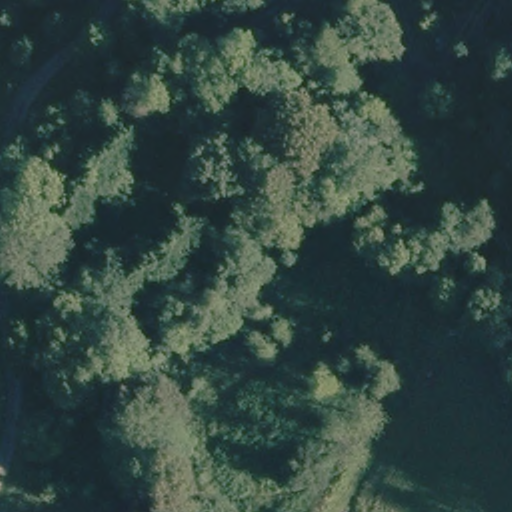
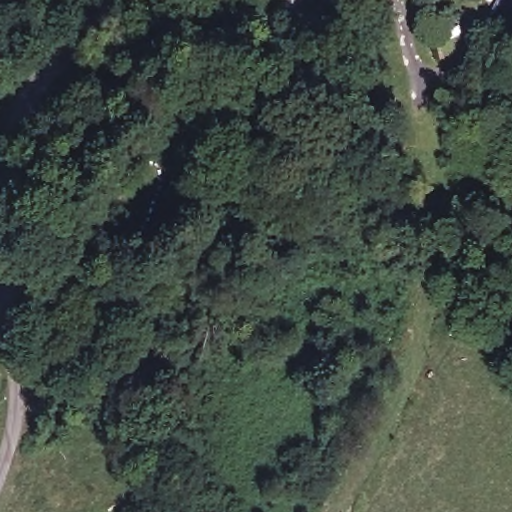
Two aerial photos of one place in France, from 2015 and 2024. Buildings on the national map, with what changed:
unchanged [(208,270),(185,261),(195,239),(220,249),(208,270)]

